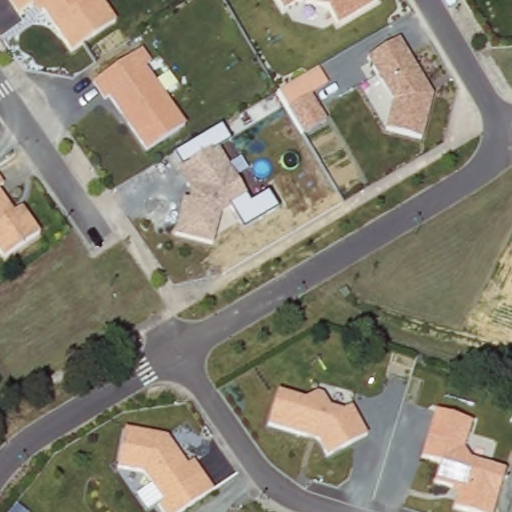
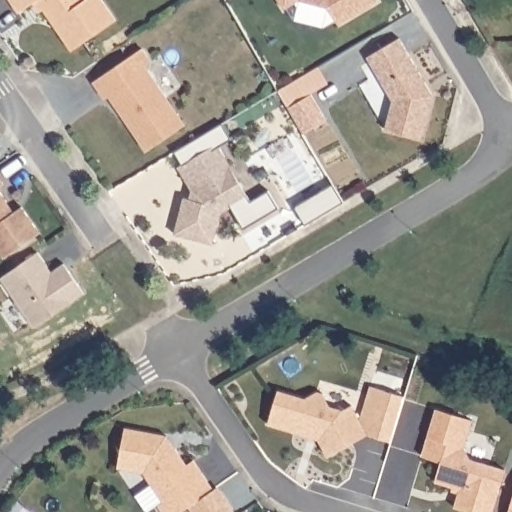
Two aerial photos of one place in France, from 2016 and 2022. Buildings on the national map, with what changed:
unchanged [(35,15),(30,7),(18,15),(9,0),(86,0),(102,0),(115,20),(71,52),(42,12),(35,15)]
unchanged [(280,0),(304,0),(284,10),(280,0)]
unchanged [(333,9),(307,0),(380,0),(340,21),(333,9)]
unchanged [(436,96),(422,144),(388,133),(395,103),(368,55),(401,36),(436,96)]
unchanged [(155,61),(147,66),(188,124),(147,152),(110,97),(104,101),(93,86),(145,48),(155,61)]
unchanged [(329,88),(314,96),(327,120),(303,135),(276,94),(319,69),(329,88)]
unchanged [(254,204),(236,213),(232,209),(224,213),(216,243),(177,233),(185,199),(192,200),(193,195),(177,166),(219,141),(254,204)]
unchanged [(3,184),(0,186),(0,179),(3,184)]
unchanged [(14,212),(21,207),(40,233),(4,258),(0,252),(0,192),(14,212)]
new [(0,279),(38,252),(50,272),(63,263),(83,294),(34,328),(0,279)]
unchanged [(309,398),(324,390),(330,406),(342,410),(355,405),(369,437),(326,458),(320,441),(267,425),(276,390),(309,398)]
unchanged [(475,421),(467,450),(472,461),(508,469),(497,512),(463,512),(453,509),(458,490),(435,483),(440,463),(422,457),(437,407),(475,421)]
unchanged [(168,433),(189,463),(196,458),(216,493),(185,512),(163,512),(160,507),(164,502),(147,474),(121,469),(127,427),(168,433)]

